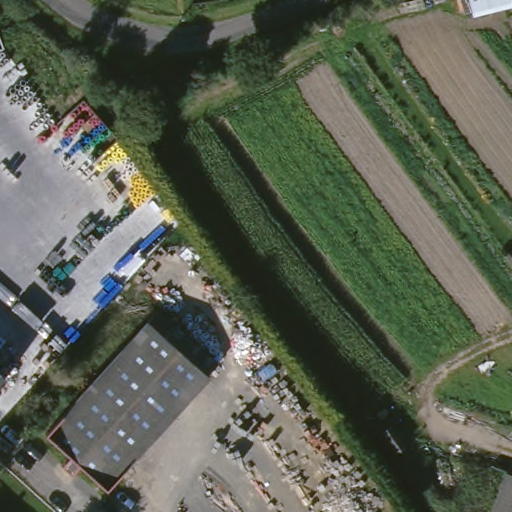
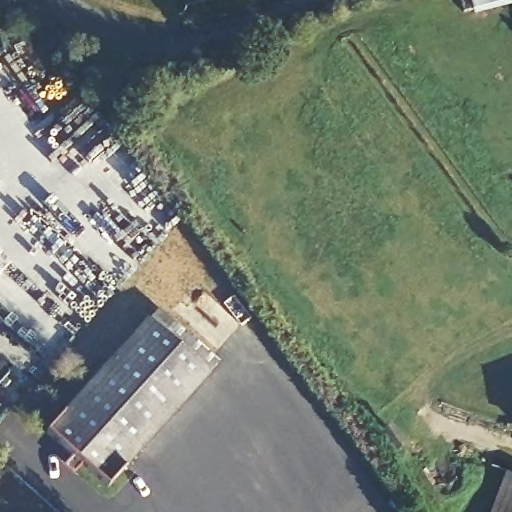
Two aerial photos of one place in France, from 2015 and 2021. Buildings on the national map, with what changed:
unchanged [(230,364),(120,487),(56,429),(166,308),(230,364)]
unchanged [(0,384),(0,374),(5,379),(0,384)]
unchanged [(508,421),(512,411),(512,423),(508,421)]
unchanged [(512,474),(512,512),(498,512),(512,474)]

